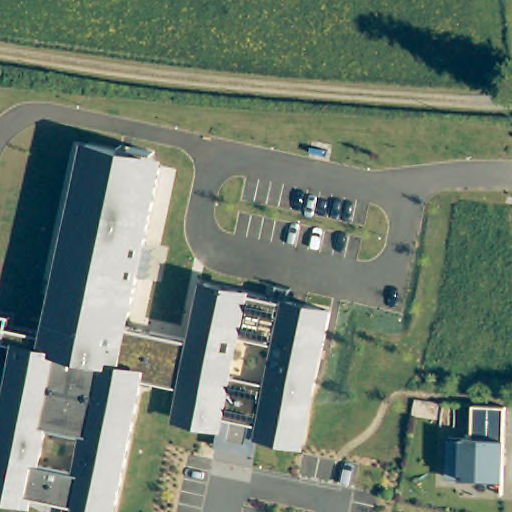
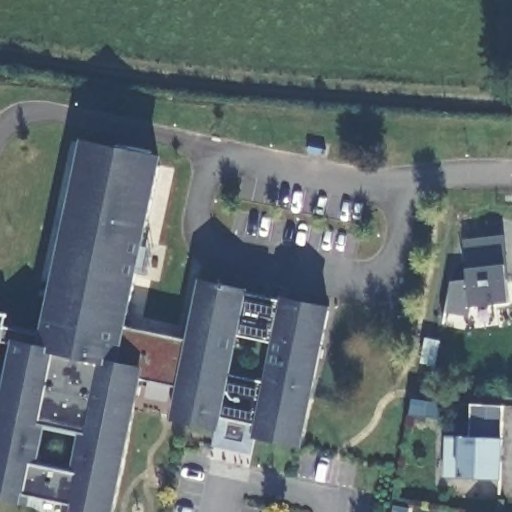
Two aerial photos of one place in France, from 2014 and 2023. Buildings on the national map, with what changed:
unchanged [(145,247),(154,248),(149,276),(139,274),(127,328),(188,339),(203,279),(250,289),(249,293),(283,300),(284,297),(334,308),(302,448),(258,439),(254,456),(214,446),(218,430),(172,421),(178,386),(143,378),(114,512),(63,512),(65,503),(33,497),(30,507),(0,500),(0,411),(14,346),(3,344),(0,354),(0,353),(0,313),(9,314),(6,326),(43,334),(81,138),(164,155),(145,247)]
new [(507,234),(512,275),(512,279),(509,279),(511,303),(473,306),(469,317),(447,312),(453,281),(469,279),(469,269),(466,239),(507,234)]
unchanged [(506,406),(505,438),(503,479),(459,478),(444,477),(446,435),(460,436),(472,436),(472,404),(506,406)]

